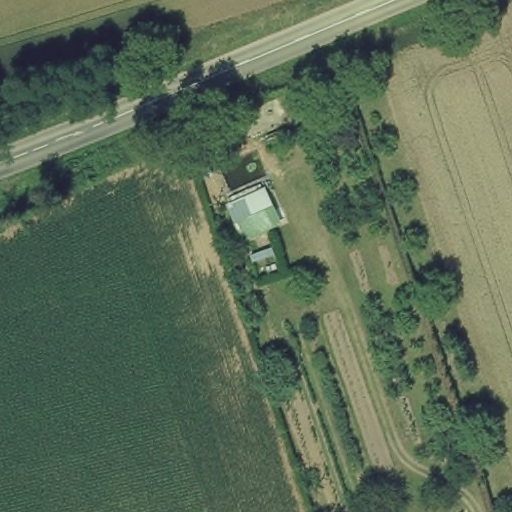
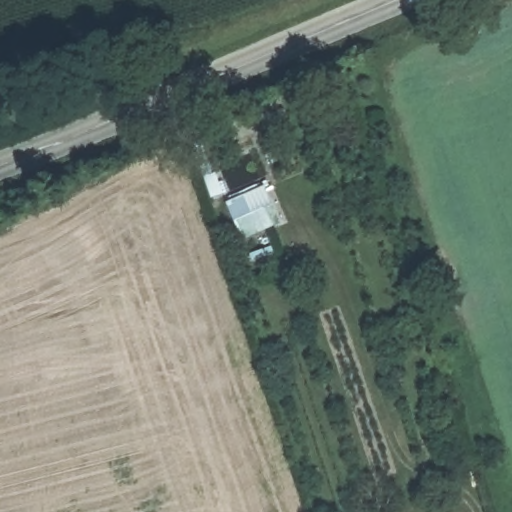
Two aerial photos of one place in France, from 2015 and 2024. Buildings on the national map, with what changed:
unchanged [(231,197),(264,187),(279,229),(246,241),(231,197)]

